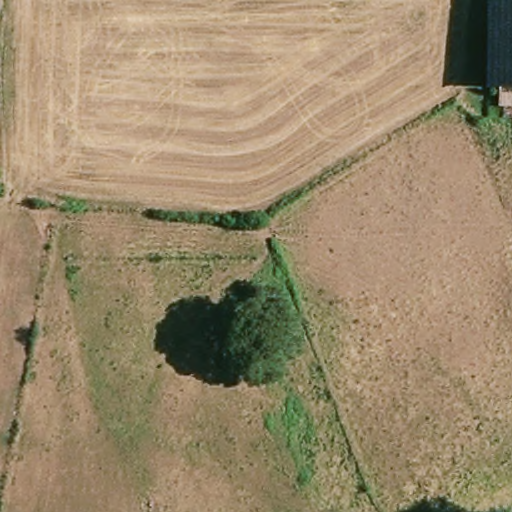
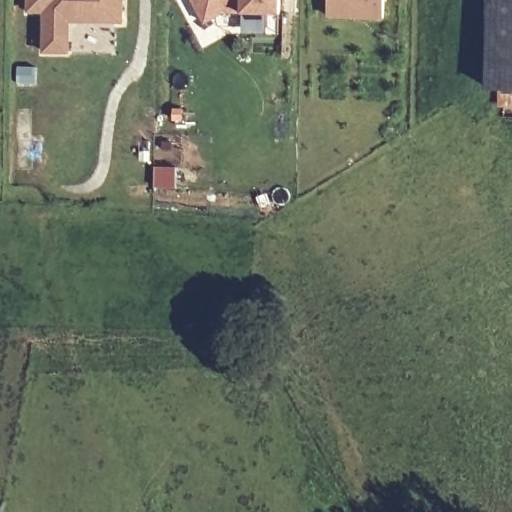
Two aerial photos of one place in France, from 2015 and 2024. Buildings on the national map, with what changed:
new [(70,20),(68,52),(44,51),(45,12),(29,12),(29,0),(123,0),(123,21),(70,20)]
new [(242,13),(225,13),(204,25),(189,0),(281,0),(281,13),(242,13)]
new [(383,0),(382,19),(326,17),(327,0),(383,0)]
unchanged [(480,0),(512,0),(512,88),(478,87),(480,0)]

